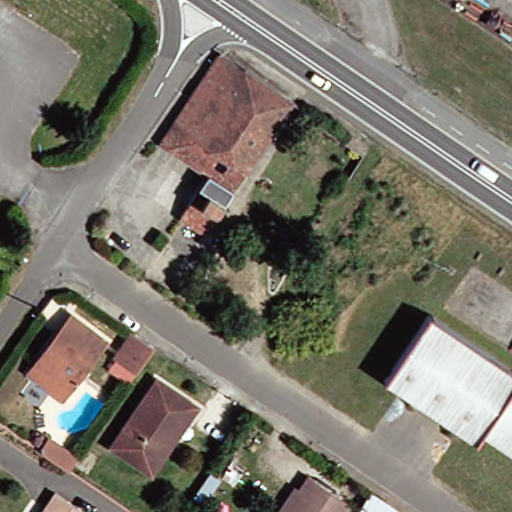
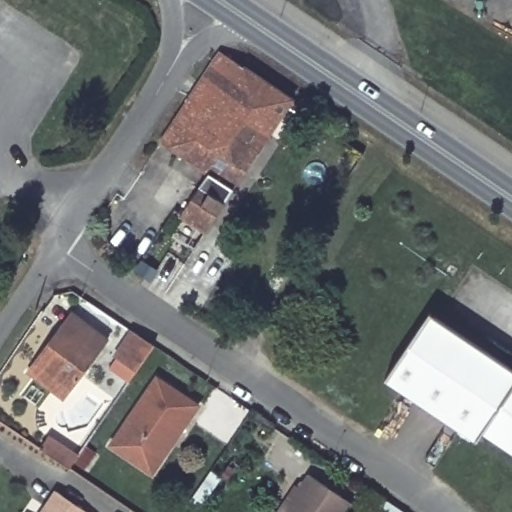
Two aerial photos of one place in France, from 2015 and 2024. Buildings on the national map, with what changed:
unchanged [(296,100),(237,190),(211,173),(165,143),(224,53),(296,100)]
unchanged [(227,204),(207,235),(182,217),(202,187),(227,204)]
unchanged [(25,373),(32,365),(45,346),(68,315),(83,325),(105,341),(67,391),(61,400),(25,373)]
unchanged [(512,369),(512,454),(483,435),(477,443),(386,381),(431,315),(512,369)]
unchanged [(130,330),(152,345),(141,362),(133,374),(112,358),(119,348),(130,330)]
unchanged [(197,406),(171,444),(150,475),(108,447),(155,378),(189,401),(197,406)]
unchanged [(299,490),(308,477),(348,505),(343,512),(277,512),(295,487),(299,490)]
unchanged [(48,507),(58,493),(87,512),(52,512),(53,510),(48,507)]

